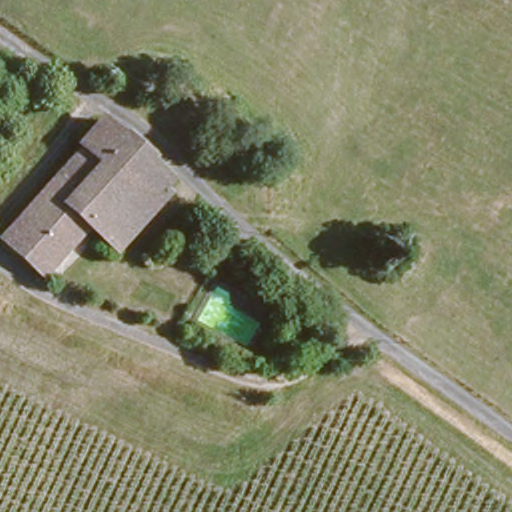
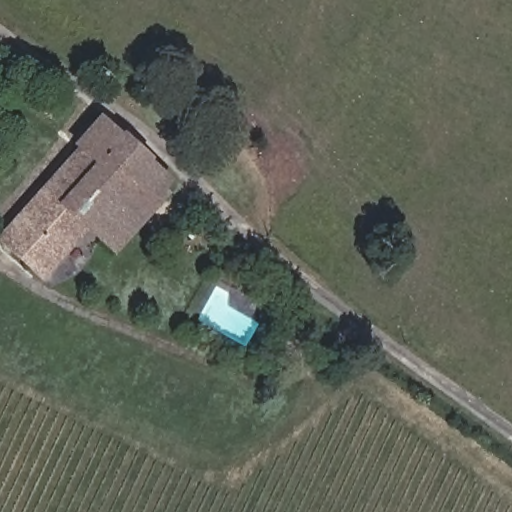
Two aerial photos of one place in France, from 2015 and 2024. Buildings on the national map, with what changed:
unchanged [(0,246),(0,228),(76,146),(66,135),(91,111),(142,162),(85,224),(35,280),(0,246)]
unchanged [(170,189),(113,249),(85,224),(142,162),(170,189)]

